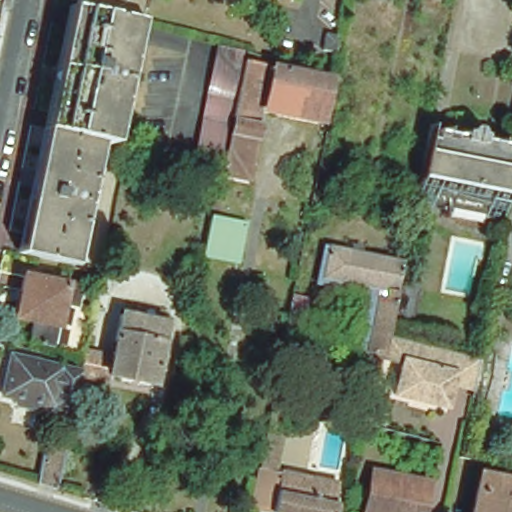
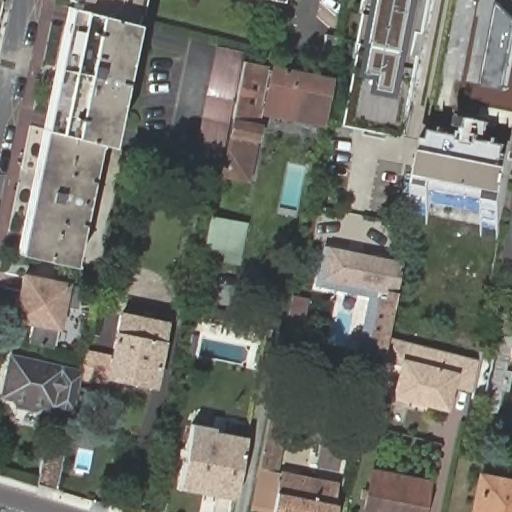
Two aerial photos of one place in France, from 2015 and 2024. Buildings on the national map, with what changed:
unchanged [(140,0),(137,14),(134,14),(132,22),(117,19),(74,8),(76,0),(140,0)]
unchanged [(263,1),(263,0),(276,0),(276,4),(263,1)]
unchanged [(291,0),(306,0),(305,3),(291,0)]
new [(346,127),(371,0),(432,0),(405,138),(346,127)]
new [(483,86),(498,3),(512,17),(512,58),(507,91),(483,86)]
unchanged [(97,142),(49,131),(74,8),(117,19),(132,22),(107,145),(97,142)]
unchanged [(339,37),(336,54),(320,51),(324,34),(339,37)]
unchanged [(194,167),(218,45),(242,51),(218,174),(194,167)]
unchanged [(229,134),(231,121),(243,61),(269,66),(330,79),(324,115),(324,116),(323,117),(323,119),(322,120),(321,120),(320,121),(319,122),(318,122),(317,122),(315,122),(314,121),(313,121),(312,120),(311,120),(310,119),(309,117),(309,116),(274,109),(273,110),(272,111),(271,111),(270,112),(269,112),(268,112),(267,112),(266,112),(265,111),(264,111),(263,111),(263,110),(262,110),(262,109),(261,108),(261,107),(257,126),(255,139),(247,180),(221,174),(229,134)]
unchanged [(436,202),(435,208),(418,205),(432,130),(467,137),(467,141),(484,145),(485,140),(512,145),(512,190),(507,217),(436,202)]
unchanged [(97,142),(72,266),(24,255),(49,131),(97,142)]
unchanged [(246,224),(238,265),(202,257),(210,217),(246,224)]
unchanged [(401,266),(399,276),(397,287),(415,290),(408,323),(407,327),(404,327),(390,323),(389,324),(386,341),(382,362),(380,372),(379,376),(376,375),(371,373),(361,372),(355,370),(356,363),(369,301),(314,290),(322,250),(327,251),(363,258),(401,266)]
unchanged [(33,347),(37,327),(23,323),(15,322),(18,307),(21,295),(23,295),(26,281),(68,290),(83,292),(82,300),(80,307),(79,313),(64,311),(60,331),(61,331),(57,352),(33,347)]
unchanged [(281,357),(291,307),(306,310),(296,361),(281,357)]
unchanged [(92,314),(92,310),(106,312),(99,343),(86,341),(92,314)]
unchanged [(106,362),(115,319),(117,319),(156,327),(159,327),(146,388),(104,380),(102,386),(74,380),(75,377),(78,359),(79,356),(106,362)]
unchanged [(450,388),(444,412),(393,399),(402,367),(382,362),(386,341),(476,364),(477,364),(471,394),(470,394),(450,388)]
unchanged [(13,410),(8,402),(0,401),(0,391),(6,362),(75,377),(74,380),(72,391),(78,392),(74,411),(68,410),(67,416),(36,408),(28,413),(13,410)]
unchanged [(389,413),(385,427),(367,422),(370,408),(389,413)]
unchanged [(254,493),(258,473),(268,422),(268,418),(284,422),(274,477),(338,490),(334,508),(333,512),(251,512),(254,496),(254,493)]
new [(191,430),(245,441),(234,502),(180,491),(191,430)]
unchanged [(36,484),(45,439),(54,441),(65,443),(56,490),(36,484)]
unchanged [(429,482),(423,512),(365,512),(367,498),(369,490),(373,470),(429,482)]
unchanged [(512,512),(471,512),(479,477),(511,483),(512,483),(512,512)]

